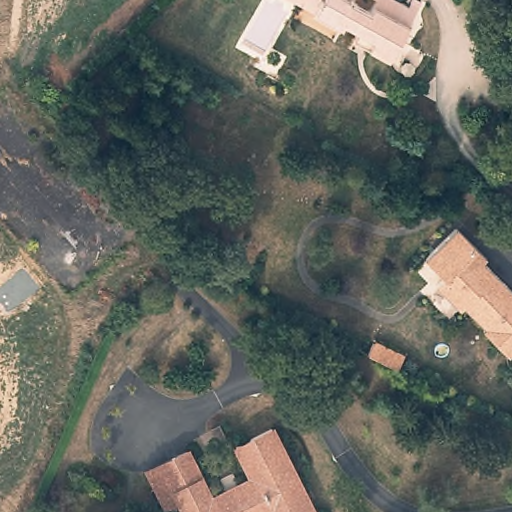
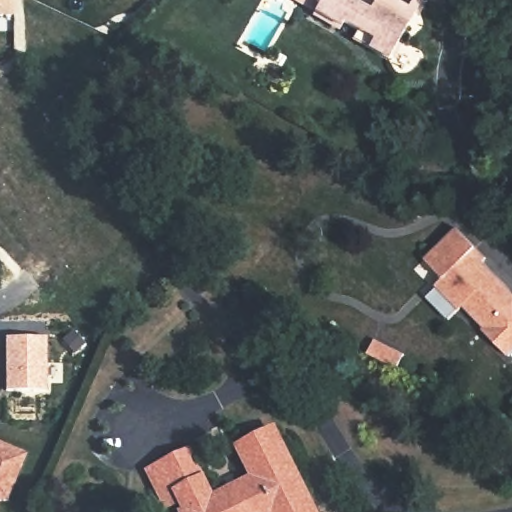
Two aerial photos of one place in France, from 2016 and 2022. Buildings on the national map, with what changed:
unchanged [(15,16),(0,16),(0,0),(15,0),(15,16)]
unchanged [(311,5),(303,0),(314,0),(311,5)]
unchanged [(405,6),(409,0),(412,0),(418,5),(381,59),(348,36),(355,25),(342,17),(337,23),(311,5),(314,0),(360,0),(368,6),(372,0),(396,0),(405,6)]
unchanged [(455,226),(474,245),(470,249),(512,290),(512,352),(509,355),(482,328),(483,325),(460,302),(456,307),(433,283),(441,274),(425,257),(455,226)]
new [(47,335),(46,390),(5,390),(5,336),(47,335)]
unchanged [(375,338),(405,353),(400,365),(370,350),(375,338)]
unchanged [(212,495),(257,471),(252,462),(249,465),(236,442),(274,423),(285,445),(281,447),(298,480),(303,478),(320,512),(278,512),(275,507),(266,512),(181,512),(180,511),(190,507),(185,498),(170,505),(152,470),(189,451),(212,495)]
unchanged [(10,501),(0,501),(0,442),(29,453),(10,501)]

